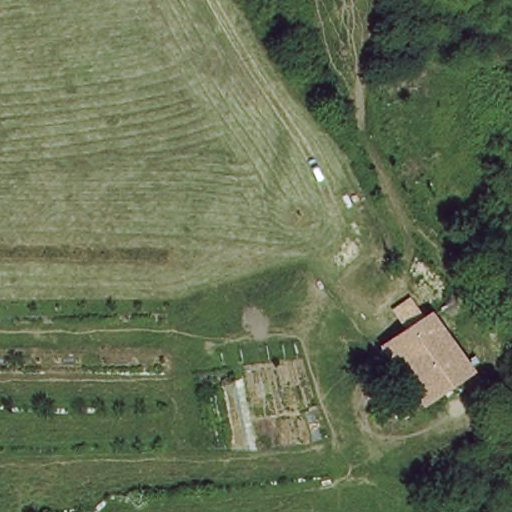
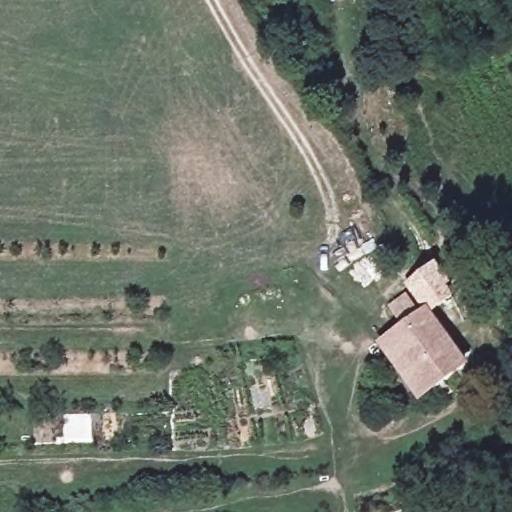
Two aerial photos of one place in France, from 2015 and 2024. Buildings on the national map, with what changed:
unchanged [(472,373),(423,407),(396,369),(379,347),(403,331),(430,313),(472,373)]

